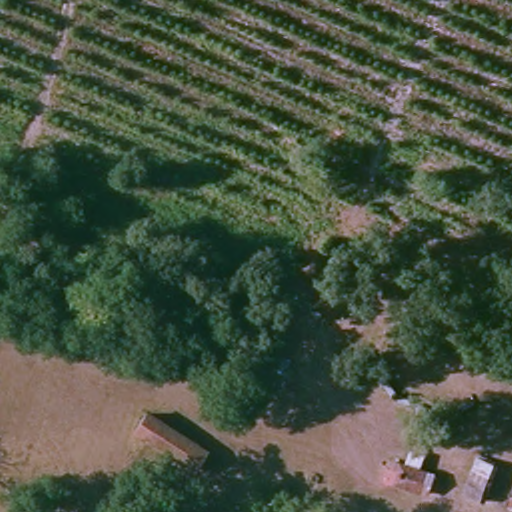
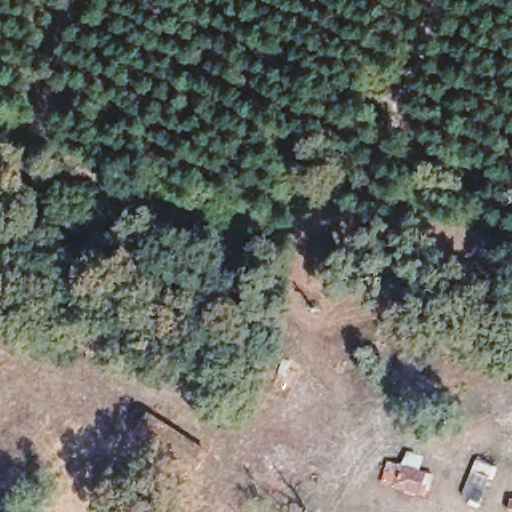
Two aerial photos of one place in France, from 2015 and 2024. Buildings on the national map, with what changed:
unchanged [(207,451),(192,472),(133,432),(145,412),(207,451)]
unchanged [(380,486),(385,459),(435,477),(431,498),(380,486)]

